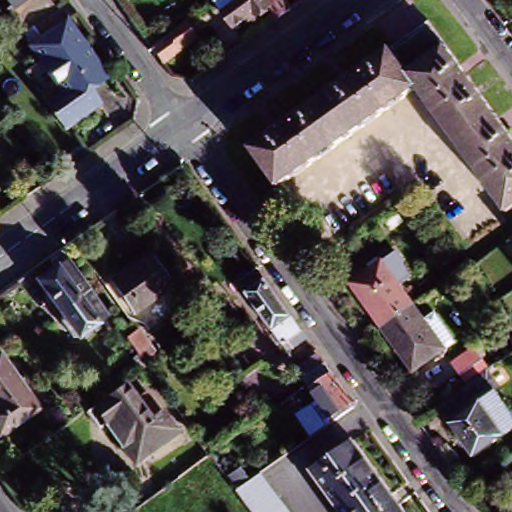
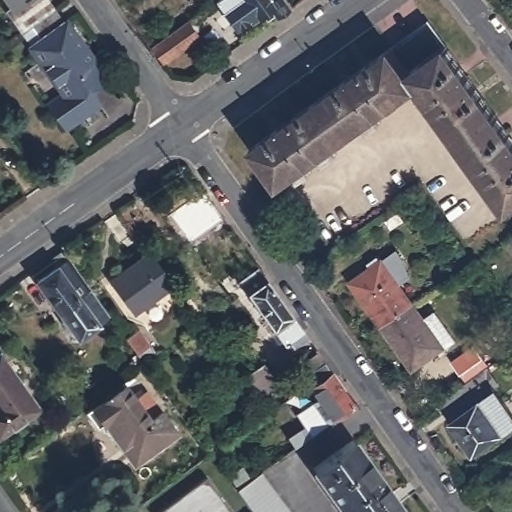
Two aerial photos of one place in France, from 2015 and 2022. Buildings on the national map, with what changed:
unchanged [(31,25),(18,7),(14,11),(6,0),(50,0),(55,7),(31,25)]
unchanged [(267,10),(266,9),(246,23),(245,22),(231,31),(215,7),(210,0),(280,0),(280,1),(267,10)]
unchanged [(43,101),(60,88),(30,46),(41,38),(31,25),(55,7),(106,78),(90,90),(101,105),(70,128),(65,131),(43,101)]
unchanged [(503,213),(412,91),(276,188),(247,149),(420,24),(512,148),(512,207),(503,213)]
unchanged [(154,52),(160,47),(170,41),(189,27),(200,42),(171,63),(165,67),(154,52)]
unchanged [(143,248),(181,300),(148,323),(135,305),(129,310),(105,277),(143,248)]
unchanged [(98,324),(77,340),(66,341),(53,325),(60,320),(33,286),(45,276),(38,267),(50,258),(98,324)]
unchanged [(368,270),(365,265),(375,258),(380,262),(410,306),(379,329),(348,285),(368,270)]
unchanged [(241,296),(262,280),(310,346),(290,361),(241,296)]
unchanged [(379,329),(410,306),(420,321),(430,313),(454,346),(443,353),(441,351),(411,373),(379,329)]
unchanged [(506,316),(500,321),(495,314),(501,309),(506,316)]
unchanged [(123,359),(135,350),(123,334),(135,326),(147,341),(145,342),(152,352),(142,359),(146,365),(134,373),(123,359)]
unchanged [(299,419),(320,403),(307,387),(303,381),(295,370),(316,354),(325,365),(329,371),(331,374),(355,409),(335,423),(335,424),(313,439),(299,419)]
unchanged [(242,377),(263,361),(282,386),(260,402),(242,377)]
unchanged [(0,365),(35,413),(0,439),(0,365)]
unchanged [(440,407),(453,397),(485,375),(487,379),(512,413),(512,434),(477,459),(442,411),(440,407)]
unchanged [(126,450),(107,425),(100,430),(88,415),(130,386),(141,399),(152,391),(183,435),(151,458),(139,468),(126,450)]
unchanged [(315,473),(355,445),(404,512),(342,512),(315,473)]
new [(228,475),(241,466),(250,479),(238,488),(228,475)]
demolished [(190,489),(209,475),(217,487),(199,500),(190,489)]
new [(232,512),(158,512),(206,476),(232,512)]
unchanged [(242,504),(236,495),(238,493),(261,477),(287,512),(248,512),(242,504)]

